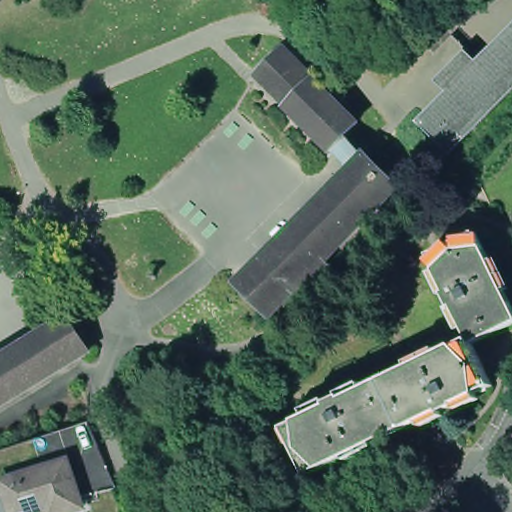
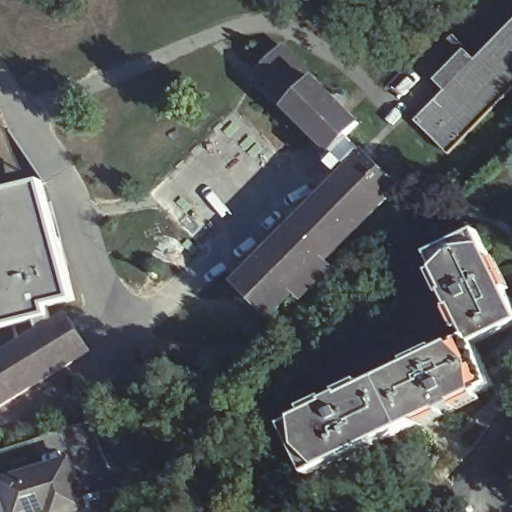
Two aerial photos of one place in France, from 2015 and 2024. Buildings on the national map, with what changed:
unchanged [(418,119),(446,92),(435,81),(461,47),(480,59),(512,28),(512,99),(454,155),(418,119)]
unchanged [(232,274),(345,167),(282,110),(297,95),(264,57),(289,39),(319,78),(365,118),(352,134),(405,184),(280,320),(232,274)]
new [(70,293),(41,298),(45,312),(0,324),(0,185),(37,176),(70,293)]
unchanged [(460,406),(462,411),(447,417),(446,413),(397,437),(314,476),(293,430),(334,410),(330,405),(345,398),(348,403),(473,343),(457,310),(452,312),(446,297),(450,295),(432,257),(479,235),(489,255),(501,280),(512,303),(512,330),(475,347),(493,385),(495,388),(460,406)]
unchanged [(92,355),(0,412),(0,365),(70,320),(92,355)]
unchanged [(83,512),(12,512),(4,485),(70,464),(85,511),(83,512)]

